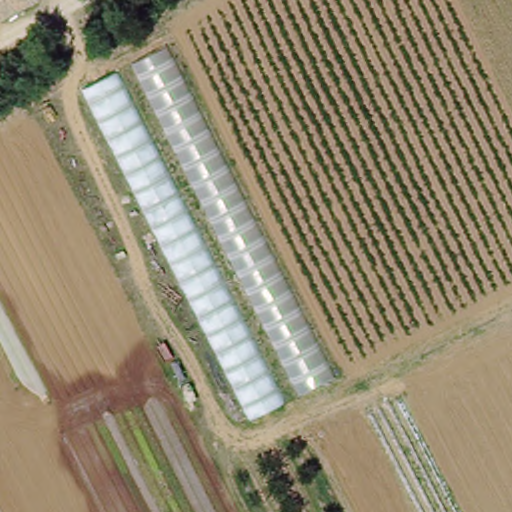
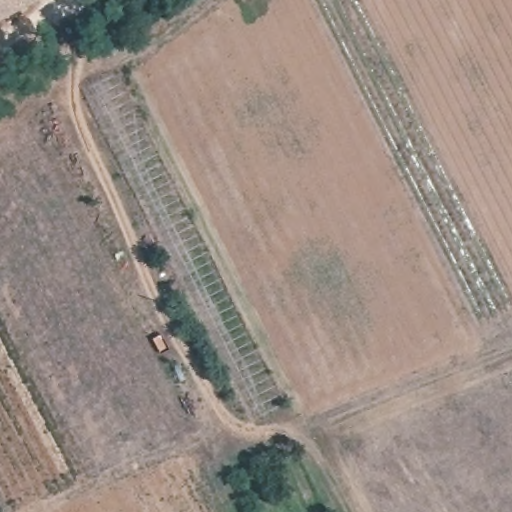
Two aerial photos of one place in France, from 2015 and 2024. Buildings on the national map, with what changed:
unchanged [(0,21),(0,0),(34,0),(35,2),(0,21)]
demolished [(80,82),(165,37),(342,386),(258,431),(80,82)]

